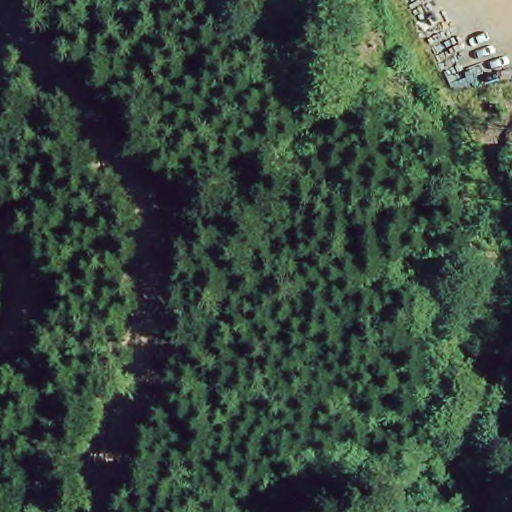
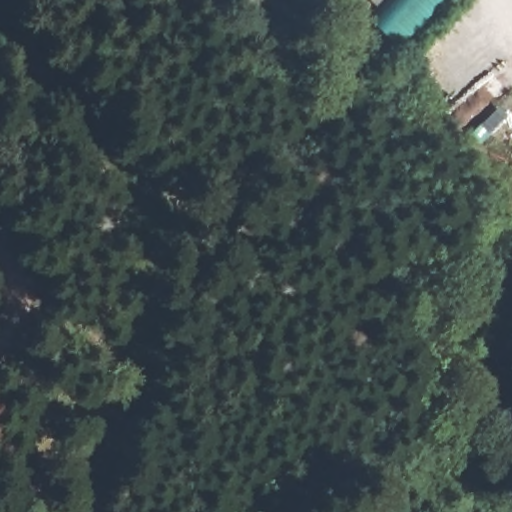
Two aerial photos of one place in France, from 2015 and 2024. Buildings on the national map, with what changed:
new [(405,52),(369,18),(379,6),(371,0),(454,0),(405,52)]

